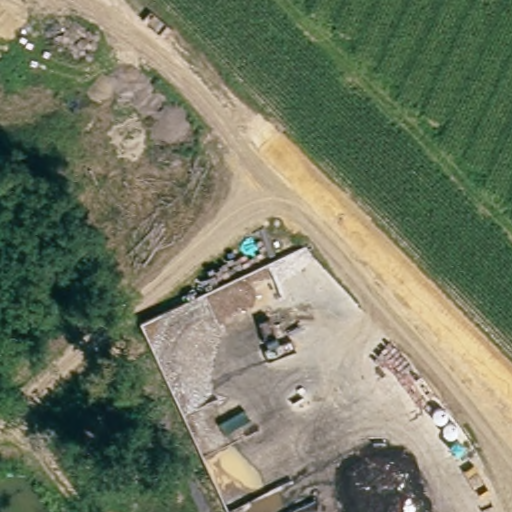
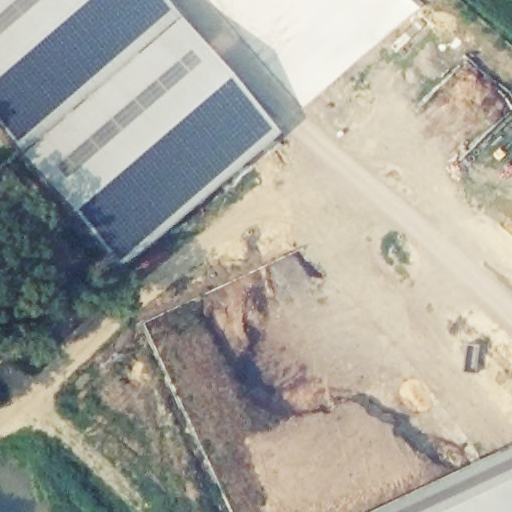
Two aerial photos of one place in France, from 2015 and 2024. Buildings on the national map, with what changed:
new [(0,133),(0,0),(163,0),(278,136),(118,269),(0,133)]
new [(512,444),(512,512),(368,512),(512,444)]

